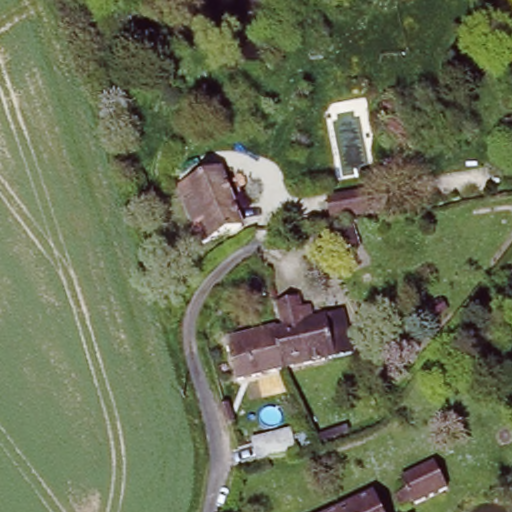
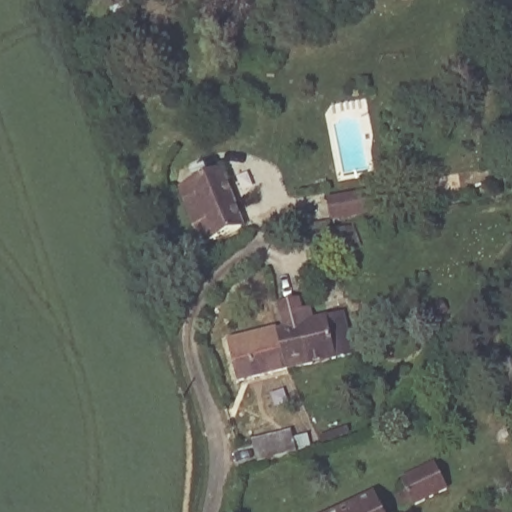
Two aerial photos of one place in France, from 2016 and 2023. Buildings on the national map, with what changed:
unchanged [(181,180),(222,165),(243,223),(202,238),(181,180)]
unchanged [(334,192),(374,184),(378,205),(338,213),(334,192)]
unchanged [(351,214),(354,234),(320,240),(317,220),(351,214)]
unchanged [(342,307),(342,313),(351,357),(338,360),(287,370),(277,322),(282,321),(277,297),(296,293),(299,306),(307,304),(310,314),(327,310),(342,307)]
unchanged [(241,379),(230,332),(277,322),(287,370),(241,379)]
unchanged [(257,439),(295,426),(302,448),(265,461),(257,439)]
unchanged [(407,507),(400,492),(412,486),(407,476),(439,460),(454,485),(407,507)]
unchanged [(377,491),(388,512),(336,512),(377,491)]

